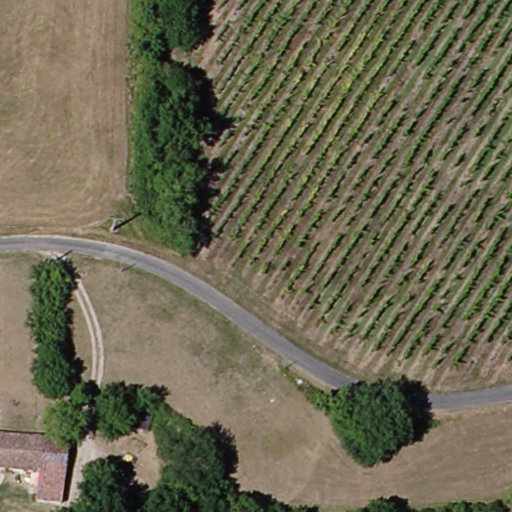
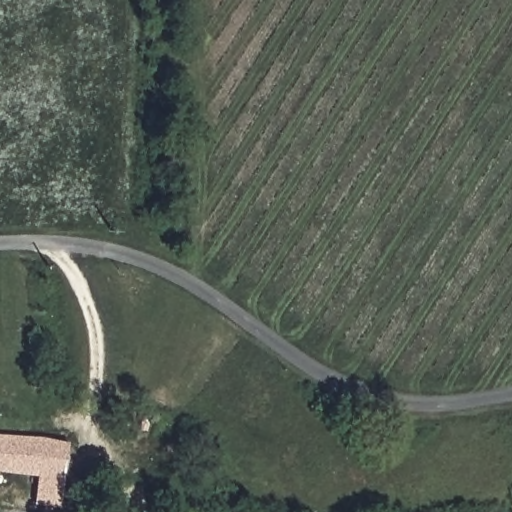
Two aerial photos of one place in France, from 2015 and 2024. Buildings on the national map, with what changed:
unchanged [(69,504),(42,503),(40,475),(0,472),(0,436),(77,442),(69,504)]

